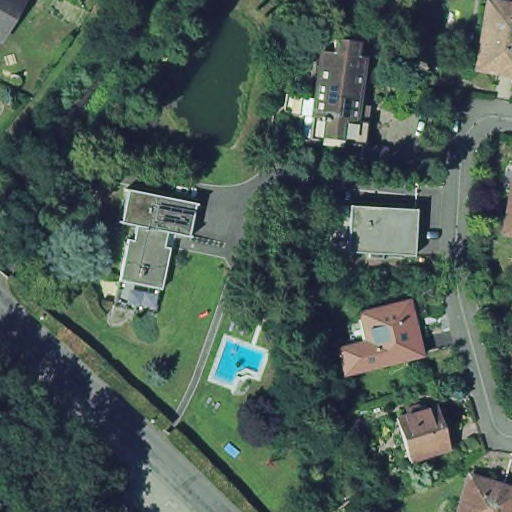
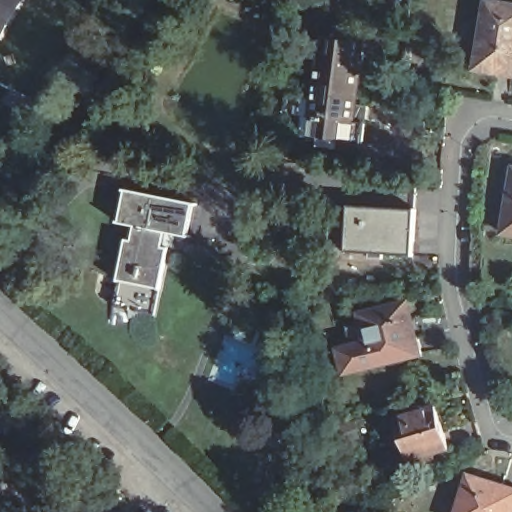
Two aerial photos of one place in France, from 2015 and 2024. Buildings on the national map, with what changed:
unchanged [(0,45),(0,0),(20,0),(26,4),(1,46),(0,45)]
unchanged [(478,73),(483,49),(486,50),(492,10),(490,10),(490,5),(512,9),(512,79),(478,73)]
unchanged [(331,152),(333,138),(315,135),(306,134),(309,107),(316,47),(326,48),(328,34),(355,37),(353,51),(358,52),(353,98),(366,100),(366,103),(360,102),(357,119),(365,120),(363,128),(361,141),(358,156),(331,152)]
unchanged [(495,236),(506,171),(512,172),(512,239),(495,236)]
unchanged [(160,233),(160,238),(134,234),(135,228),(118,224),(124,191),(176,202),(194,206),(187,238),(166,234),(160,233)]
unchanged [(413,259),(383,257),(382,261),(368,260),(369,256),(328,253),(310,251),(314,204),(332,206),(417,213),(413,259)]
unchanged [(158,247),(168,250),(155,313),(115,304),(127,241),(132,242),(134,234),(160,238),(158,247)]
unchanged [(402,311),(409,340),(414,342),(419,361),(401,365),(400,361),(340,375),(335,351),(369,344),(363,319),(402,311)]
unchanged [(451,452),(413,464),(400,425),(412,421),(410,413),(420,410),(422,417),(439,412),(451,452)]
unchanged [(501,490),(502,486),(512,489),(512,512),(460,512),(471,480),(501,490)]

